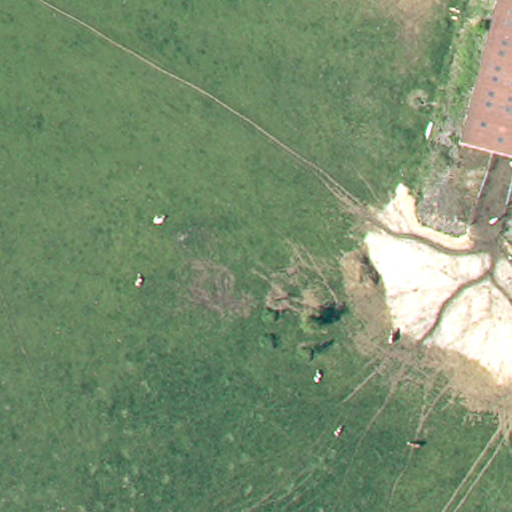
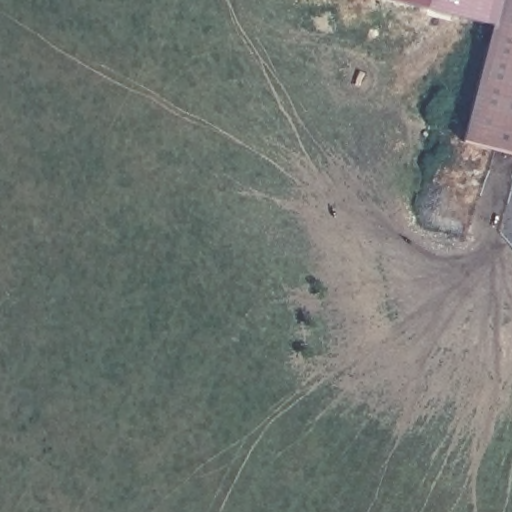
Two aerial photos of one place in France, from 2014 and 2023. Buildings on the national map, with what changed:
new [(389,0),(495,0),(488,25),(389,0)]
unchanged [(512,0),(512,157),(457,142),(494,0),(512,0)]

